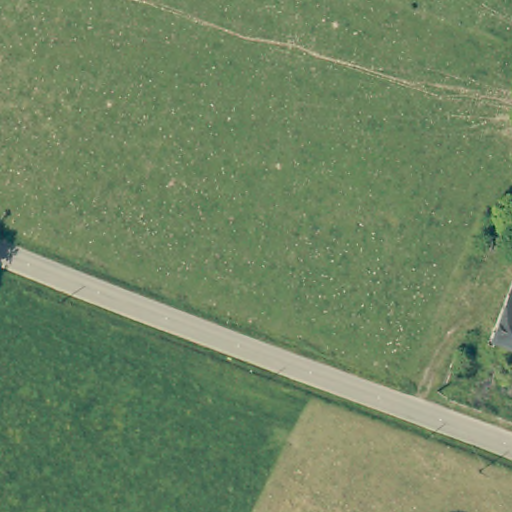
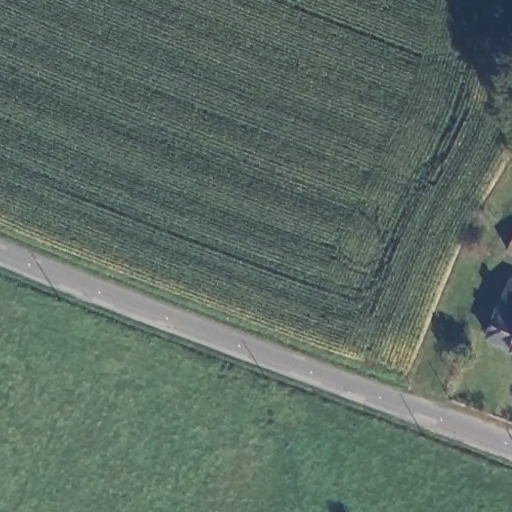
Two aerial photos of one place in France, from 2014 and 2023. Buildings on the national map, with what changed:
unchanged [(512,285),(512,345),(493,338),(512,285)]

